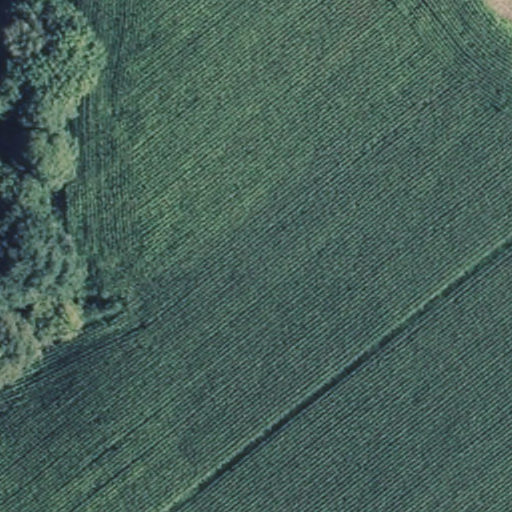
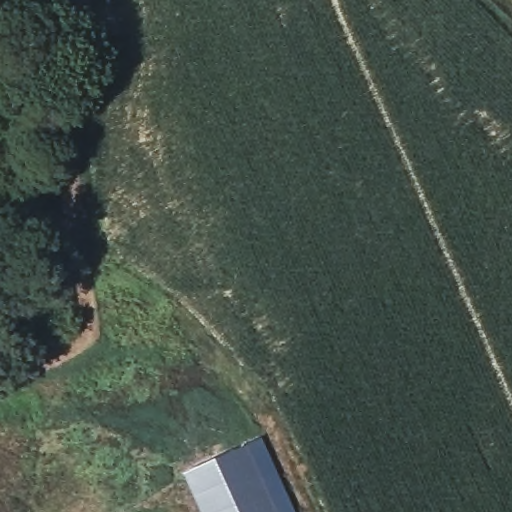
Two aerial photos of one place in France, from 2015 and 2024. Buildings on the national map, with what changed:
new [(294,512),(201,512),(184,473),(248,445),(261,438),(294,512)]

